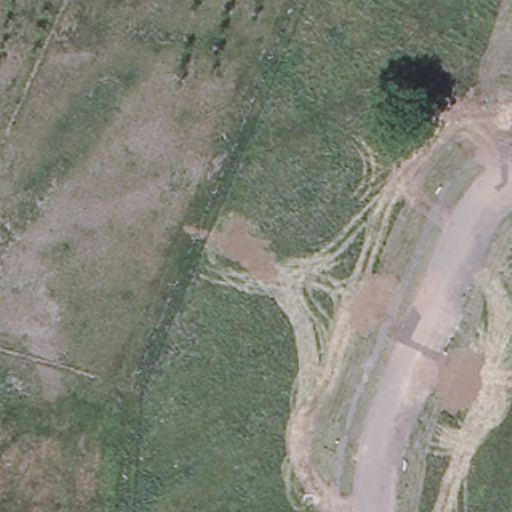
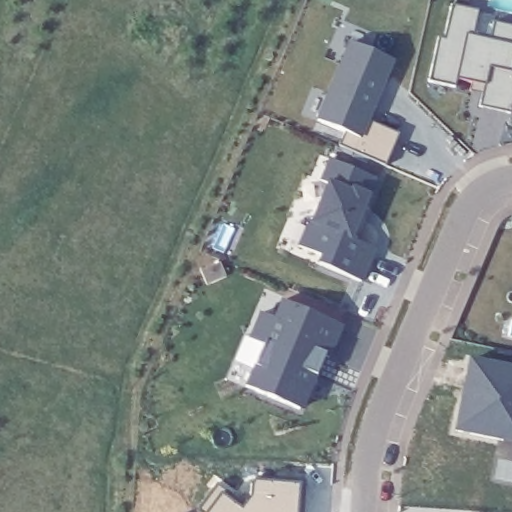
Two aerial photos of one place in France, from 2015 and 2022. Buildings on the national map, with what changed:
unchanged [(442,39),(451,5),(477,10),(472,36),(488,39),(492,22),(512,27),(512,61),(510,70),(512,71),(512,104),(511,111),(480,105),(485,85),(457,80),(457,85),(429,80),(440,38),(442,39)]
new [(395,60),(374,121),(400,132),(387,165),(340,146),(349,129),(318,118),(349,40),(395,60)]
new [(318,262),(321,252),(300,245),(307,224),(322,187),(317,185),(328,159),(377,177),(370,196),(365,210),(370,211),(357,243),(375,250),(362,282),(318,262)]
new [(247,385),(264,345),(251,338),(261,312),(275,319),(281,304),(341,328),(329,358),(322,355),(299,410),(247,385)]
new [(512,368),(512,444),(454,431),(468,358),(512,368)]
new [(207,510),(222,490),(215,484),(217,483),(239,500),(255,476),(304,480),(304,481),(299,481),(297,512),(210,512),(207,510)]

